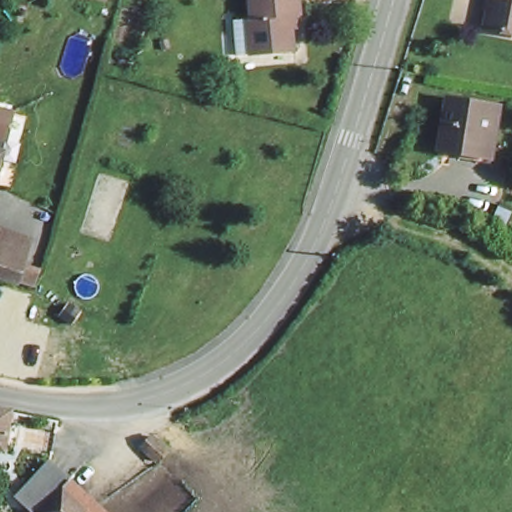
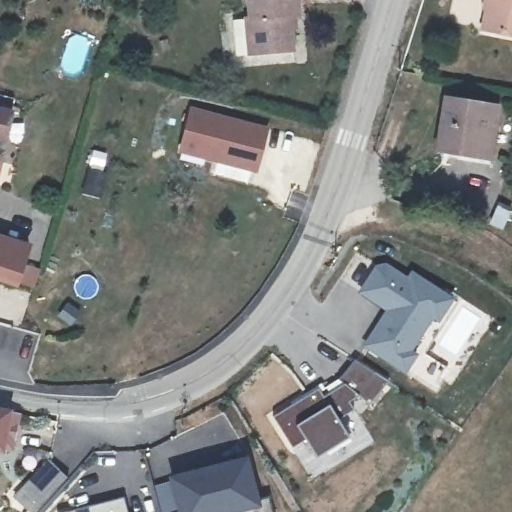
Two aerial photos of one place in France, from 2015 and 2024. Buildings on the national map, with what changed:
unchanged [(257,27),(256,0),(294,0),(297,25),(292,25),(292,57),(264,59),(252,60),(251,28),(257,27)]
unchanged [(494,4),(490,0),(512,0),(512,42),(488,39),(494,4)]
unchanged [(487,157),(437,150),(445,102),(495,109),(487,157)]
new [(190,106),(270,126),(257,172),(178,152),(190,106)]
unchanged [(12,115),(7,141),(6,143),(0,142),(0,113),(12,115)]
unchanged [(4,155),(0,170),(0,154),(4,155)]
unchanged [(19,239),(15,260),(34,267),(26,283),(0,274),(0,233),(19,239)]
new [(404,373),(363,345),(386,311),(359,292),(375,266),(386,262),(407,276),(411,271),(453,297),(438,322),(432,317),(411,350),(417,354),(404,373)]
demolished [(1,325),(44,338),(38,383),(0,373),(0,328),(1,325)]
new [(357,393),(347,401),(352,408),(335,416),(348,437),(317,454),(306,437),(293,446),(274,417),(318,389),(320,392),(338,378),(354,361),(386,381),(370,402),(357,393)]
unchanged [(0,437),(0,401),(2,401),(0,437)]
demolished [(165,452),(149,465),(133,446),(147,432),(165,452)]
new [(169,476),(246,455),(258,498),(268,496),(272,512),(235,512),(235,511),(231,512),(178,512),(169,476)]
new [(68,477),(36,512),(30,512),(12,496),(48,459),(68,477)]
demolished [(23,500),(51,465),(70,480),(66,488),(93,512),(37,512),(23,500)]
new [(123,497),(127,512),(68,512),(123,497)]

